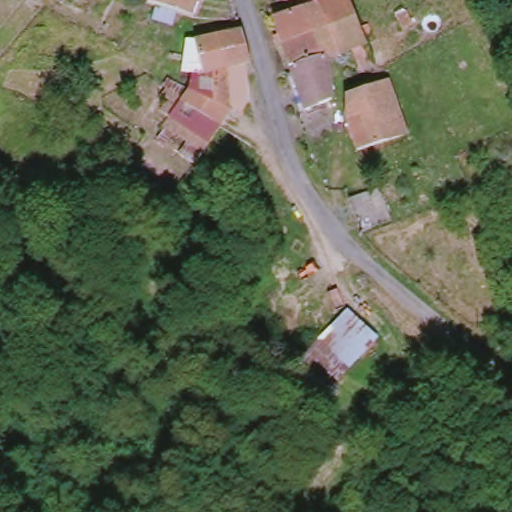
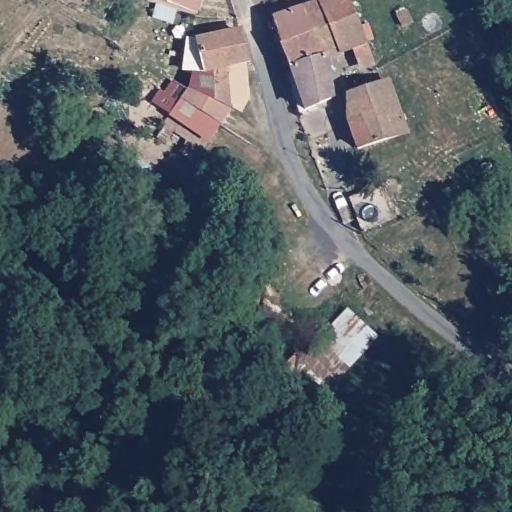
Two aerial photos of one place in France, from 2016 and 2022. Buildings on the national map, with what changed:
unchanged [(194,16),(153,0),(199,0),(194,16)]
unchanged [(309,0),(310,0),(319,26),(328,50),(289,65),(271,13),(309,0)]
unchanged [(310,0),(335,0),(353,51),(331,59),(328,50),(319,26),(310,0)]
unchanged [(335,0),(355,0),(377,62),(359,66),(353,51),(335,0)]
unchanged [(193,73),(183,72),(186,34),(206,36),(219,32),(244,23),(251,65),(233,67),(240,106),(233,115),(191,86),(193,73)]
unchanged [(337,76),(298,89),(289,65),(328,50),(331,59),(337,76)]
unchanged [(344,91),(383,80),(394,78),(410,132),(358,148),(344,91)]
unchanged [(191,86),(233,115),(191,172),(151,139),(191,86)]
unchanged [(353,199),(374,192),(386,188),(394,216),(360,228),(353,199)]
unchanged [(337,338),(329,330),(350,305),(384,337),(354,371),(327,348),(337,338)]

